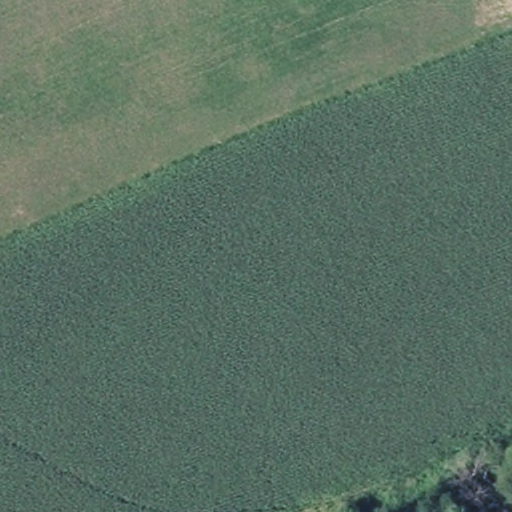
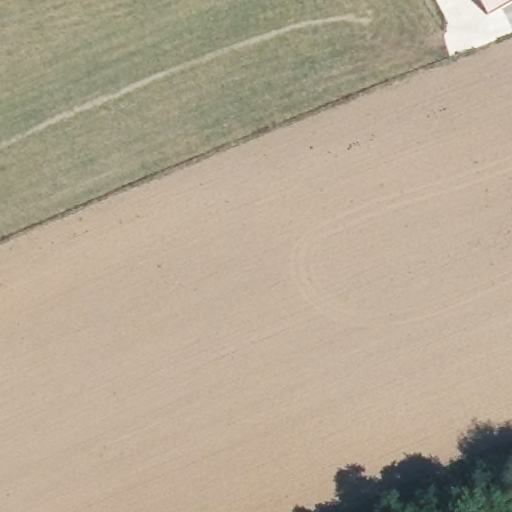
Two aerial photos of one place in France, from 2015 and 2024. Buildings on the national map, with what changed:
new [(486,17),(476,0),(512,0),(512,3),(486,17)]

